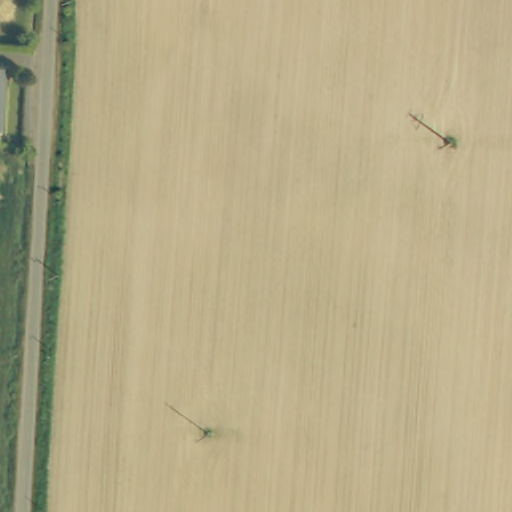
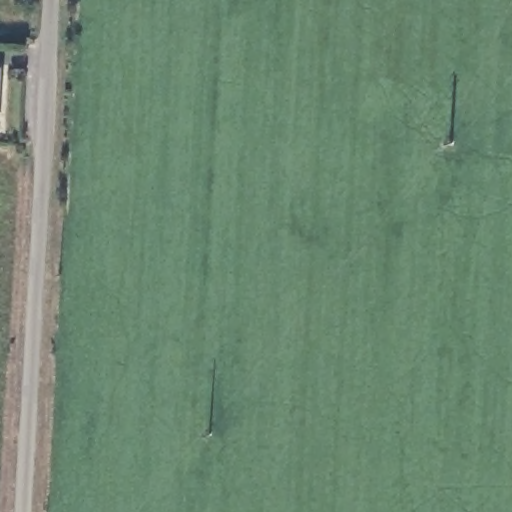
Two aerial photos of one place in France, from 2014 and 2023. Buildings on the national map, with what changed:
[]

